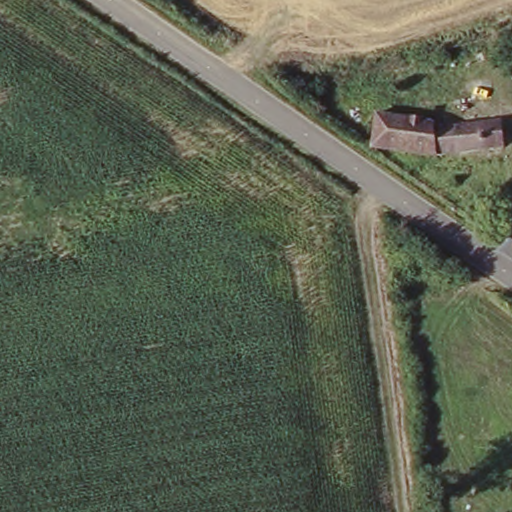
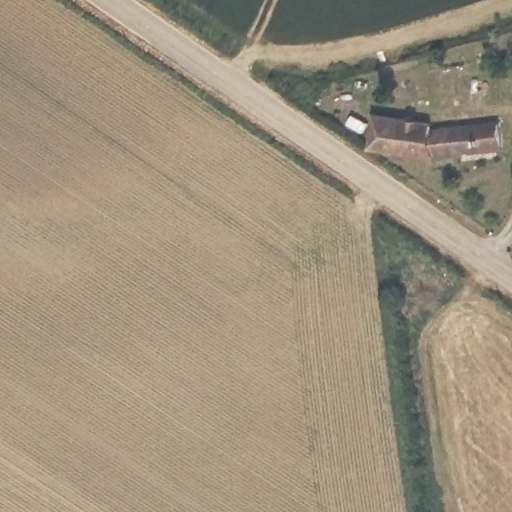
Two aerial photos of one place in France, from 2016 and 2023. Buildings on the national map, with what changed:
unchanged [(432,127),(431,132),(497,125),(501,150),(427,159),(372,151),(375,117),(432,127)]

